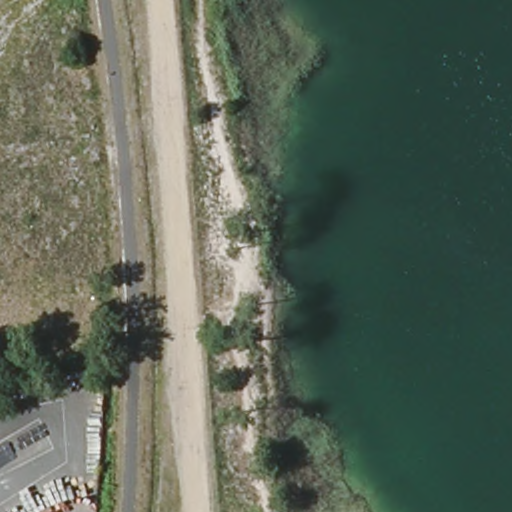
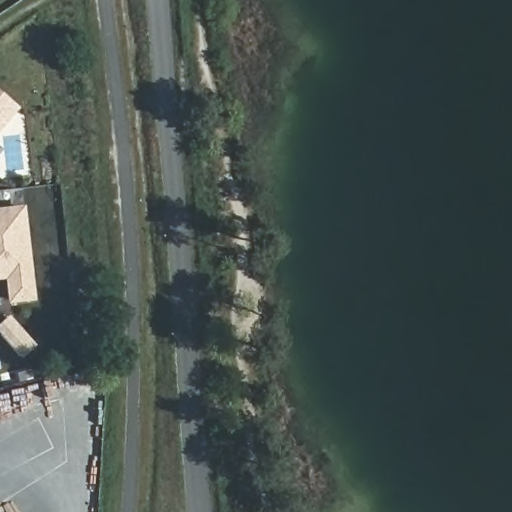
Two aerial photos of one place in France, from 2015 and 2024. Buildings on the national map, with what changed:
new [(0,131),(0,92),(19,108),(0,131)]
new [(8,304),(5,280),(0,280),(0,208),(27,206),(36,300),(8,304)]
new [(24,358),(6,338),(0,331),(13,320),(19,326),(37,347),(24,358)]

